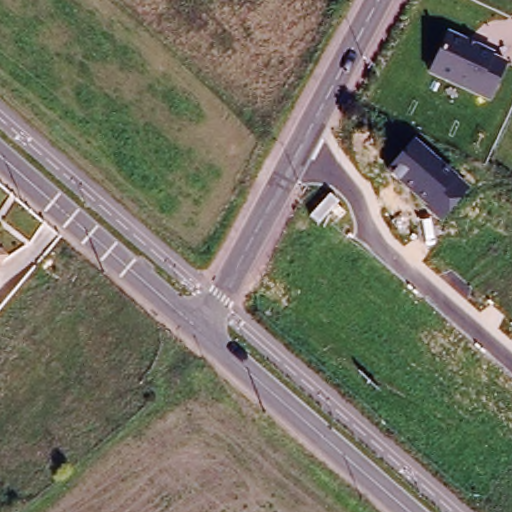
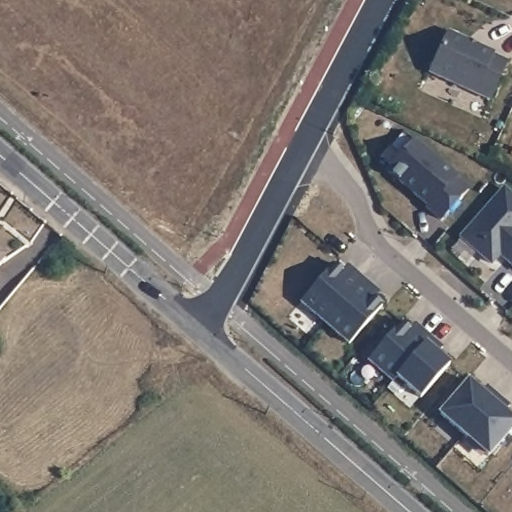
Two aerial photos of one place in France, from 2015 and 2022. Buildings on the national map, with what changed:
unchanged [(494,57),(507,63),(491,101),(429,74),(447,31),(496,52),(494,57)]
unchanged [(440,222),(425,208),(427,205),(385,169),(414,138),(470,187),(440,222)]
new [(512,202),(512,268),(498,256),(488,266),(459,240),(501,192),(512,202)]
unchanged [(0,265),(0,252),(6,257),(0,265)]
new [(332,265),(345,276),(350,270),(362,280),(323,324),(300,303),(332,265)]
new [(362,280),(373,290),(367,296),(380,307),(348,345),(323,324),(362,280)]
new [(400,324),(412,335),(418,329),(429,339),(395,378),(396,378),(391,383),(367,361),(400,324)]
new [(429,339),(440,348),(435,355),(447,366),(419,398),(396,378),(395,378),(429,339)]
new [(466,382),(479,393),(485,387),(496,397),(462,436),(438,415),(466,382)]
new [(507,407),(502,413),(512,422),(512,427),(486,457),(462,436),(496,397),(507,407)]

